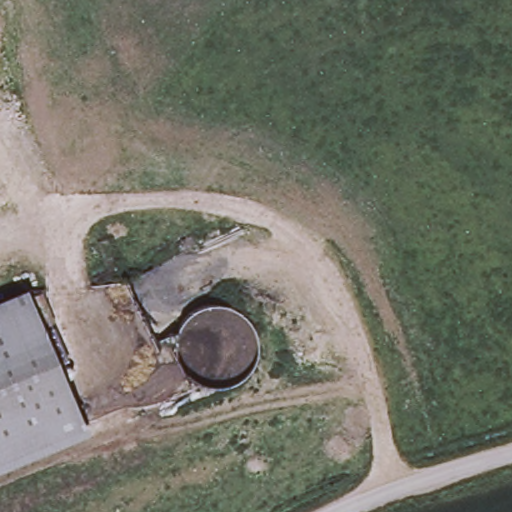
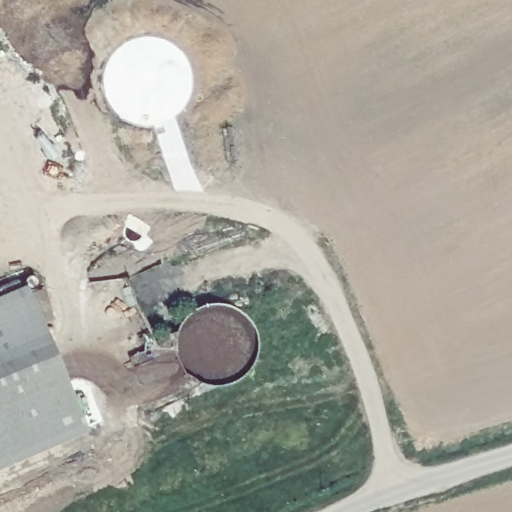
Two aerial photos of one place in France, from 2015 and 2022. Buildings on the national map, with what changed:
unchanged [(25,288),(83,425),(0,461),(0,299),(25,288)]

